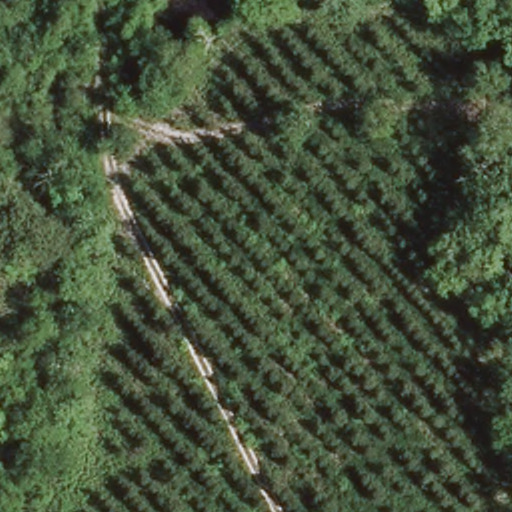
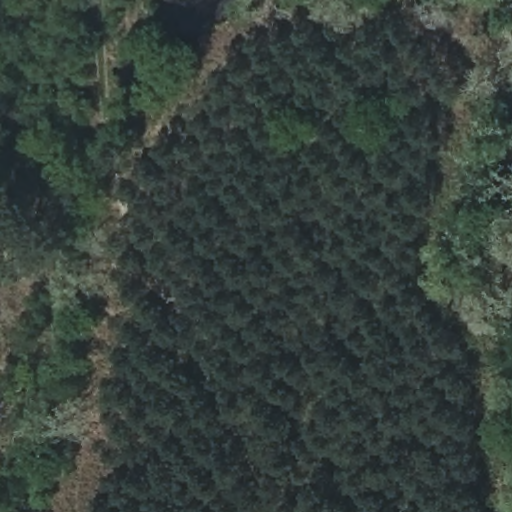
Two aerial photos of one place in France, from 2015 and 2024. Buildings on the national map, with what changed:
[]

